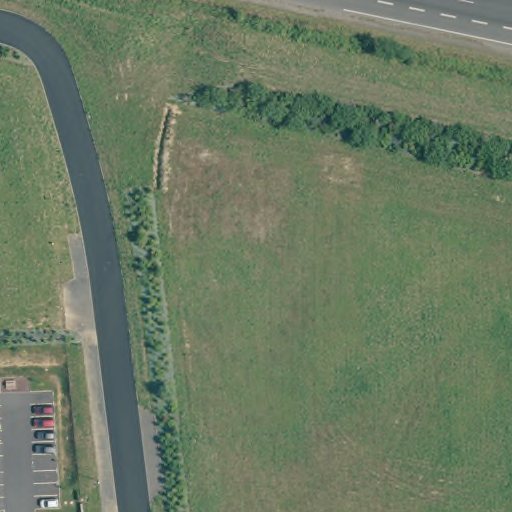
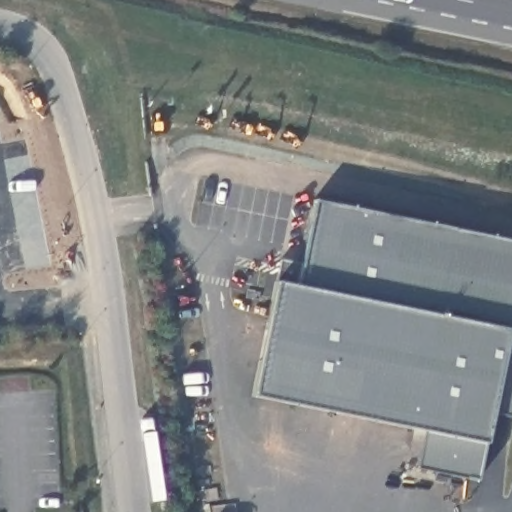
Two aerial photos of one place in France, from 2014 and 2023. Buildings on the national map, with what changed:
new [(277,282),(281,260),(302,266),(315,201),(512,242),(512,418),(490,413),(483,443),(476,482),(417,468),(427,430),(255,395),(277,282)]

